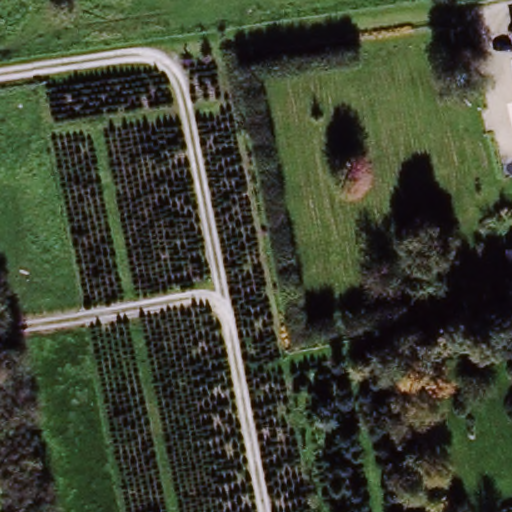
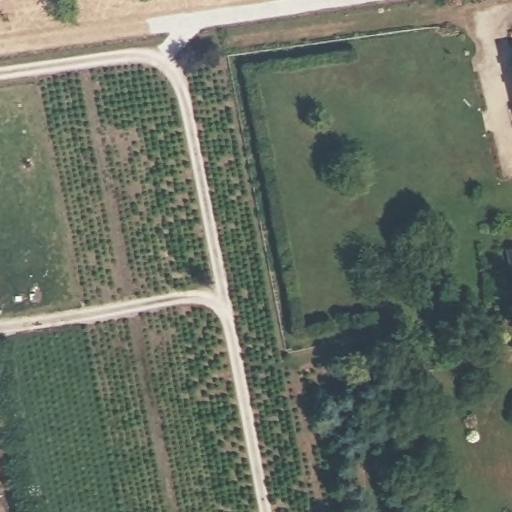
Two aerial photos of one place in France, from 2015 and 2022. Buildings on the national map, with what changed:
[]

